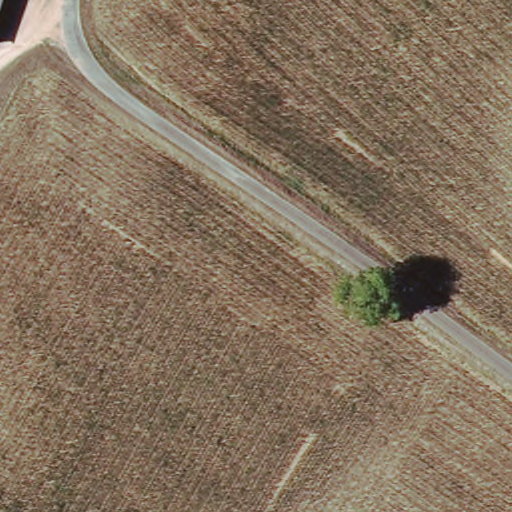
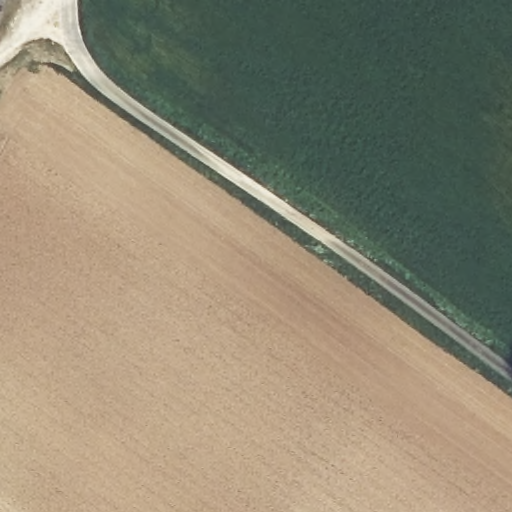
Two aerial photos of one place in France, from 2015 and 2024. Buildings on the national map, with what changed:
[]

